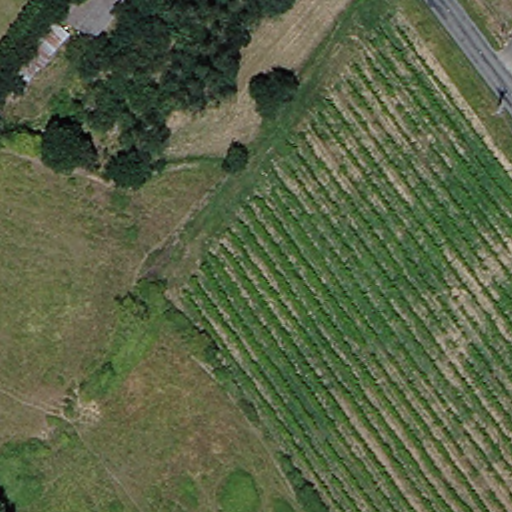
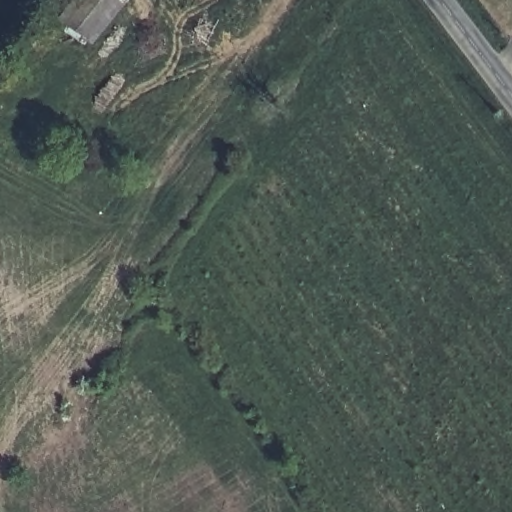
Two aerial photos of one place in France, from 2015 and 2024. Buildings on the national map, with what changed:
unchanged [(92,49),(74,36),(15,103),(0,91),(0,82),(57,17),(71,0),(130,0),(92,49)]

